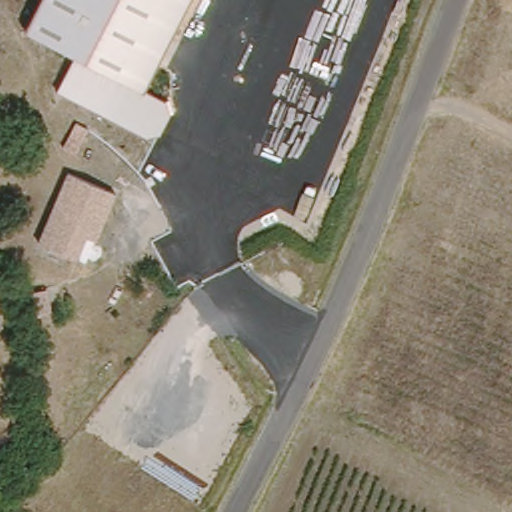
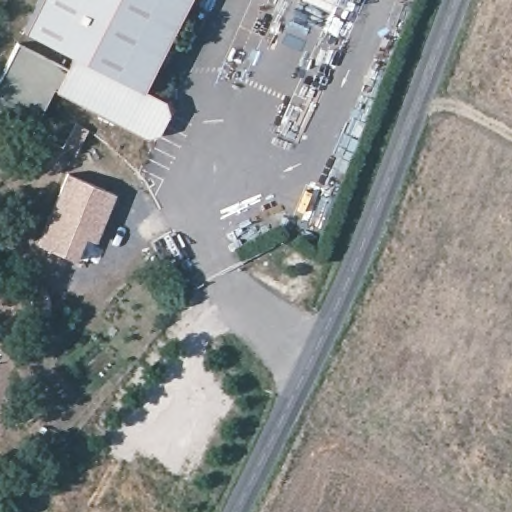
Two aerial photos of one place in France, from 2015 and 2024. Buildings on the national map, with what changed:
unchanged [(191,0),(147,85),(178,106),(161,140),(62,90),(79,53),(30,27),(44,0),(191,0)]
new [(71,70),(62,90),(55,85),(32,133),(0,117),(0,80),(18,44),(71,70)]
unchanged [(84,130),(79,148),(65,144),(70,126),(84,130)]
unchanged [(106,189),(81,263),(33,249),(58,175),(106,189)]
unchanged [(51,313),(30,319),(25,293),(47,287),(51,313)]

